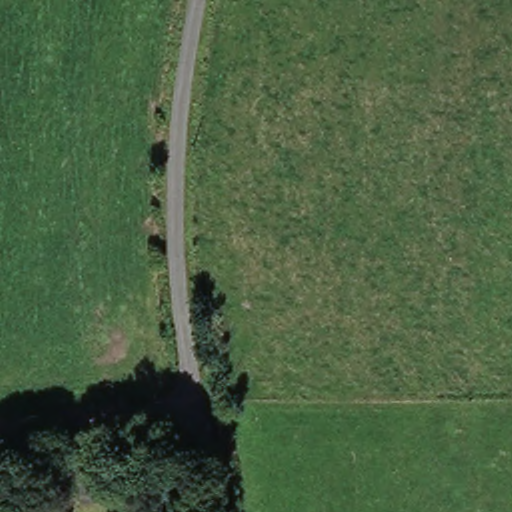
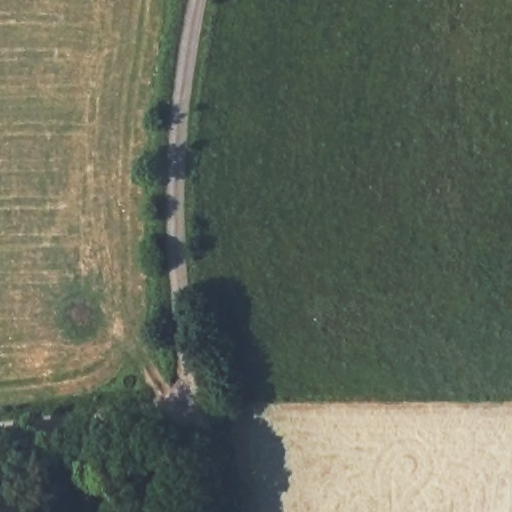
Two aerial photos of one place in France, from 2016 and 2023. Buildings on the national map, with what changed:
unchanged [(71,452),(91,449),(100,497),(80,501),(71,452)]

